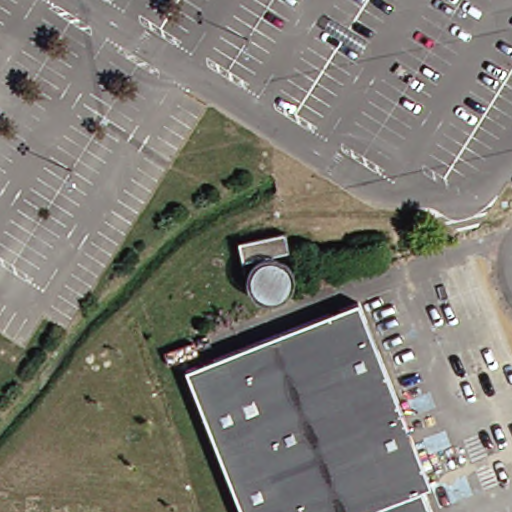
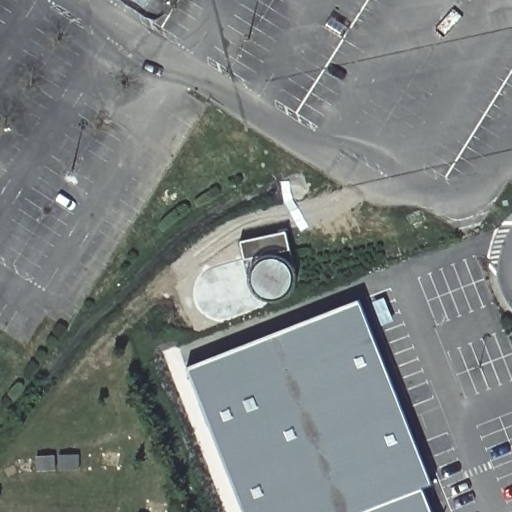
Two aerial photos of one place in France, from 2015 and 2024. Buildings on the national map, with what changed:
unchanged [(281,265),(284,267),(287,270),(289,274),(291,279),(291,285),(291,289),(290,293),(289,295),(287,299),(285,301),(282,304),(279,306),(276,307),(272,308),(266,309),(260,307),(255,305),(251,302),(248,299),(246,296),(244,292),(243,287),(243,283),(244,280),(246,274),(249,269),(252,266),(256,263),(239,266),(234,247),(282,237),(286,256),(262,261),(268,260),(274,261),(278,263),(281,265)]
unchanged [(357,512),(238,512),(182,369),(354,302),(425,486),(417,489),(357,512)]
unchanged [(417,489),(426,512),(357,512),(417,489)]

